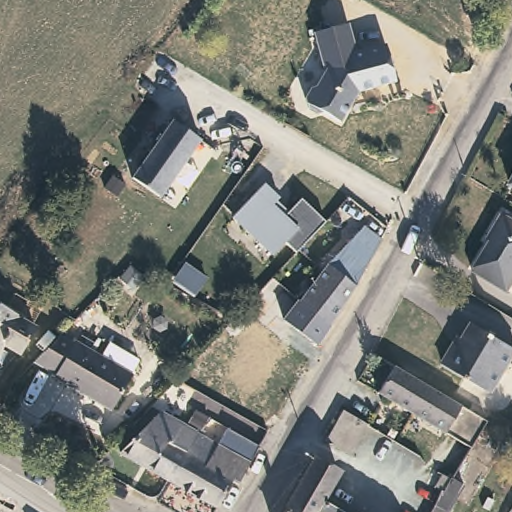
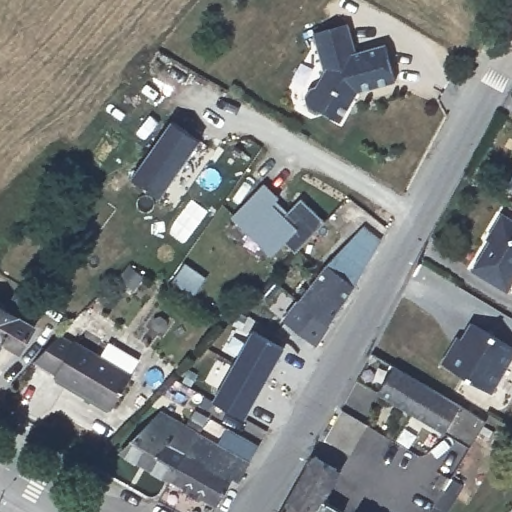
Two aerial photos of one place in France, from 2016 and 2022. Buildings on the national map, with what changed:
unchanged [(352,49),(382,41),(392,79),(347,91),(350,97),(349,99),(338,120),(319,110),(313,111),(304,105),(301,94),(307,85),(312,84),(321,69),(310,29),(343,20),(345,21),(352,49)]
unchanged [(176,117),(205,136),(155,209),(128,190),(176,117)]
unchanged [(512,180),(512,188),(508,186),(512,180)]
unchanged [(280,196),(277,199),(287,208),(301,195),(327,222),(293,255),(285,247),(272,259),(230,215),(265,181),(280,196)]
unchanged [(512,283),(507,292),(472,272),(487,244),(483,241),(490,230),(498,214),(512,221),(512,283)]
unchanged [(280,320),(297,300),(310,282),(325,265),(362,227),(377,240),(357,278),(340,307),(327,325),(315,346),(280,320)]
unchanged [(22,315),(39,325),(22,351),(7,342),(0,353),(0,301),(22,315)]
unchanged [(512,353),(494,385),(488,381),(449,358),(460,339),(465,341),(478,318),(510,336),(512,337),(512,353)]
new [(253,332),(284,349),(245,418),(213,400),(253,332)]
unchanged [(105,346),(135,364),(126,378),(128,378),(108,412),(50,379),(51,377),(34,366),(58,341),(69,347),(70,345),(96,360),(105,346)]
demolished [(232,413),(223,406),(225,404),(214,395),(246,356),(258,366),(269,374),(263,381),(253,372),(246,379),(255,387),(232,413)]
unchanged [(472,410),(486,418),(470,445),(376,392),(391,366),(472,410)]
unchanged [(117,455),(160,417),(195,434),(167,482),(164,482),(117,455)]
new [(221,450),(222,448),(215,445),(227,428),(257,446),(247,463),(221,450)]
unchanged [(222,448),(221,450),(247,463),(236,483),(230,481),(214,510),(167,482),(195,434),(197,435),(222,448)]
unchanged [(332,470),(316,497),(341,512),(279,512),(311,458),(332,470)]
unchanged [(512,512),(509,512),(512,508),(512,512)]

